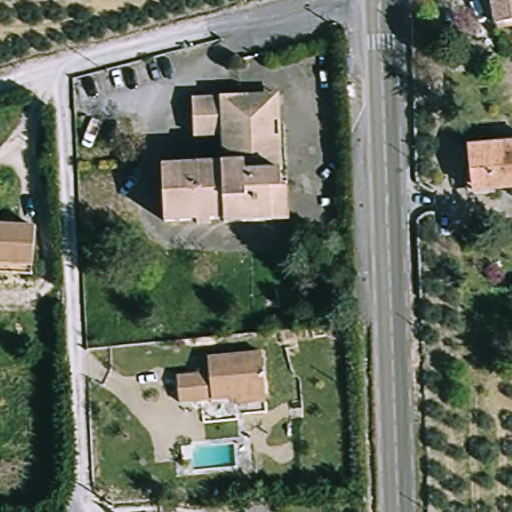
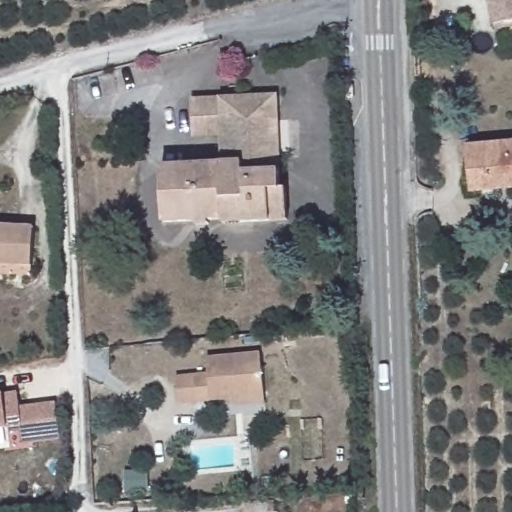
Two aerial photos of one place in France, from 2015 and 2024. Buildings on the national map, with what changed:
unchanged [(490,0),(512,0),(512,31),(496,34),(490,0)]
unchanged [(287,220),(223,223),(223,219),(208,220),(209,224),(196,224),(196,220),(163,223),(160,168),(223,164),(221,136),(192,137),(191,99),(276,95),(280,188),(286,188),(287,220)]
unchanged [(512,142),(512,188),(471,192),(466,146),(512,142)]
unchanged [(0,268),(0,221),(34,223),(32,261),(32,269),(0,268)]
unchanged [(233,404),(233,398),(178,404),(175,377),(208,374),(206,358),(260,352),(264,395),(264,402),(233,404)]
new [(4,393),(18,392),(20,407),(55,402),(61,439),(23,444),(22,426),(7,429),(0,430),(0,394),(4,393)]
unchanged [(191,458),(181,459),(180,448),(190,447),(191,458)]
unchanged [(274,512),(246,512),(245,504),(273,503),(274,512)]

